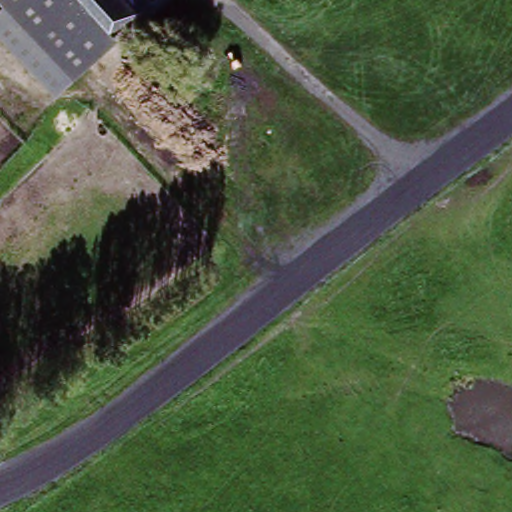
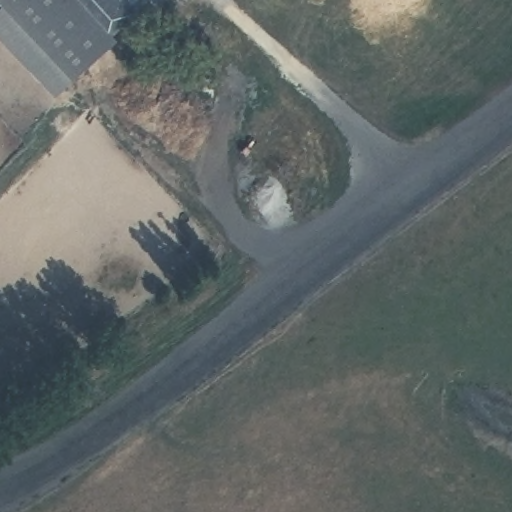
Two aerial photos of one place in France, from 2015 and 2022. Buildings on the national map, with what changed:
unchanged [(71,80),(52,60),(7,10),(18,0),(74,0),(112,42),(71,80)]

